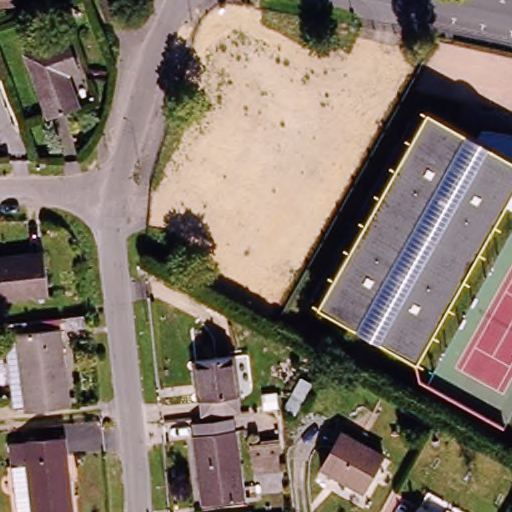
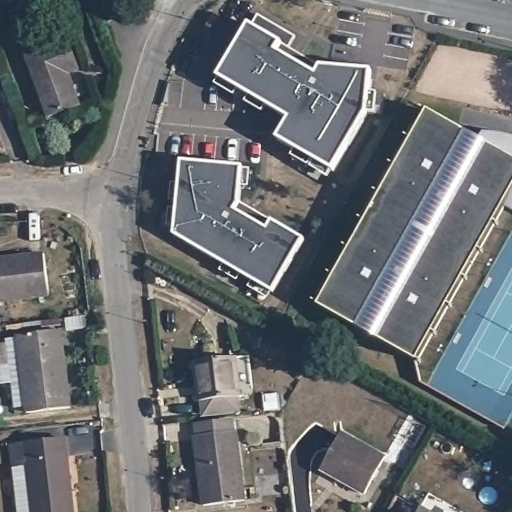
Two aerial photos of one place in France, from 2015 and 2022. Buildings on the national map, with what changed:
unchanged [(0,1),(0,0),(13,0),(13,1),(0,1)]
unchanged [(108,20),(100,0),(122,0),(127,12),(108,20)]
new [(217,77),(248,25),(251,25),(257,15),(294,36),(288,48),(321,67),(371,71),(366,114),(333,172),(277,140),(289,120),(217,77)]
demolished [(193,85),(218,40),(226,45),(230,39),(233,40),(236,34),(256,45),(253,51),(331,96),(248,246),(158,195),(213,95),(193,85)]
unchanged [(76,70),(63,74),(66,83),(70,82),(78,105),(48,116),(25,55),(66,40),(76,70)]
new [(238,90),(233,96),(216,85),(219,79),(238,90)]
new [(376,93),(374,112),(366,111),(369,92),(376,93)]
new [(266,106),(262,112),(246,102),(249,96),(266,106)]
unchanged [(504,205),(417,360),(319,304),(428,110),(478,139),(482,131),(489,129),(495,126),(503,125),(509,125),(512,125),(512,209),(504,205)]
new [(313,160),(309,167),(292,157),(296,151),(313,160)]
new [(239,202),(304,240),(273,293),(173,235),(181,162),(242,168),(239,202)]
new [(331,171),(328,178),(311,168),(315,162),(331,171)]
unchanged [(0,299),(0,258),(36,254),(42,295),(0,299)]
unchanged [(15,335),(58,330),(68,406),(25,412),(24,405),(13,407),(4,340),(16,339),(15,335)]
unchanged [(203,413),(201,396),(199,396),(195,356),(232,352),(237,392),(236,392),(238,410),(203,413)]
unchanged [(310,385),(294,414),(286,410),(301,380),(310,385)]
unchanged [(238,499),(197,504),(188,437),(230,432),(238,499)]
unchanged [(381,457),(362,492),(321,470),(341,435),(381,457)]
unchanged [(16,495),(13,466),(16,466),(13,444),(63,438),(72,512),(18,512),(16,495)]
unchanged [(426,512),(417,512),(419,508),(426,512)]

